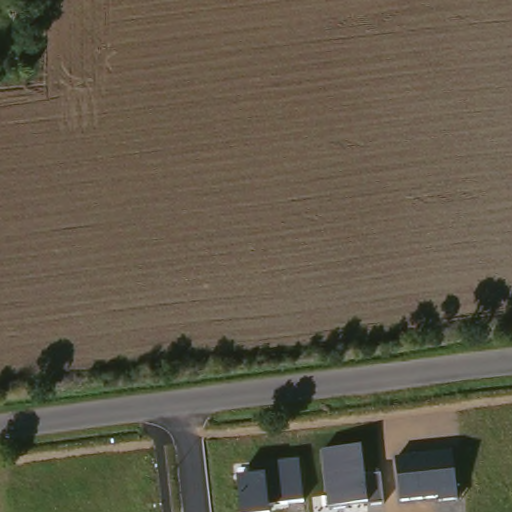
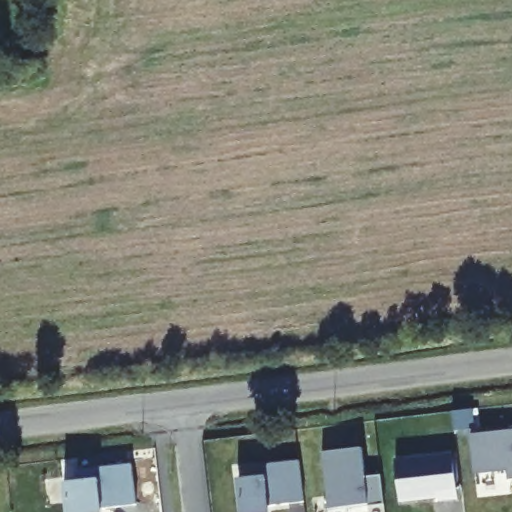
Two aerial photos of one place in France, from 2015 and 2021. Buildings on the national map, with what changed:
new [(512,428),(512,477),(509,477),(508,468),(476,471),(472,432),(512,428)]
unchanged [(368,506),(328,509),(323,455),(361,448),(365,477),(381,475),(383,504),(368,506)]
unchanged [(439,501),(438,497),(399,502),(393,461),(453,455),(458,498),(439,501)]
new [(79,477),(78,466),(131,460),(136,501),(101,505),(101,512),(66,512),(63,479),(79,477)]
unchanged [(268,506),(268,512),(239,512),(235,476),(251,475),(250,467),(298,462),(303,501),(268,506)]

